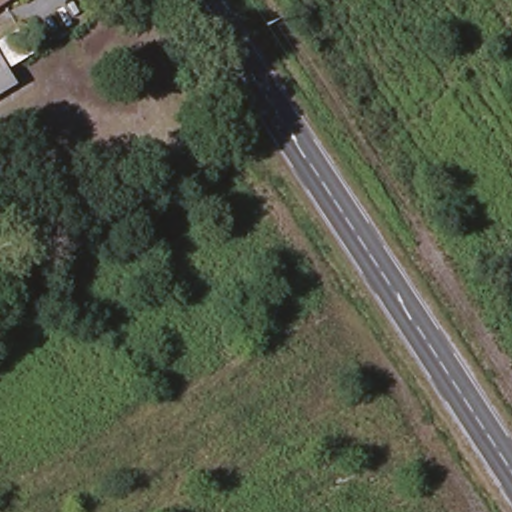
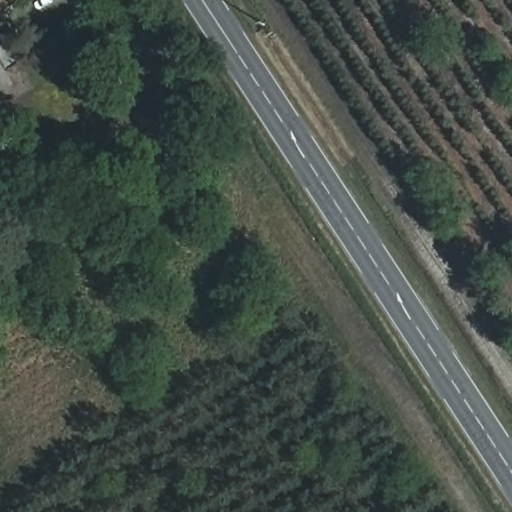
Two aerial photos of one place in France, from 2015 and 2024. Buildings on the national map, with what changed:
unchanged [(1,11),(0,10),(0,0),(19,0),(1,11)]
unchanged [(0,46),(0,38),(19,33),(32,52),(8,65),(0,46)]
unchanged [(14,83),(0,92),(0,62),(14,83)]

